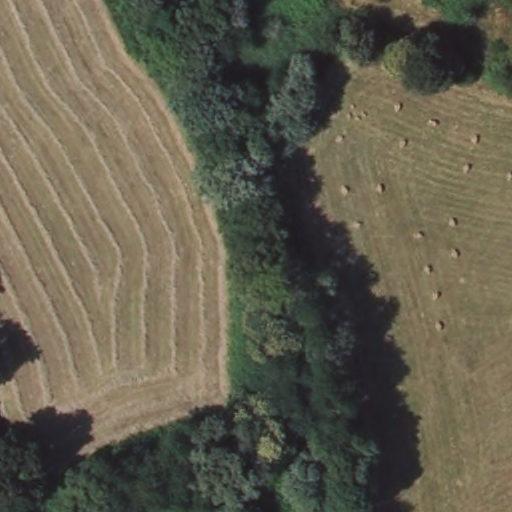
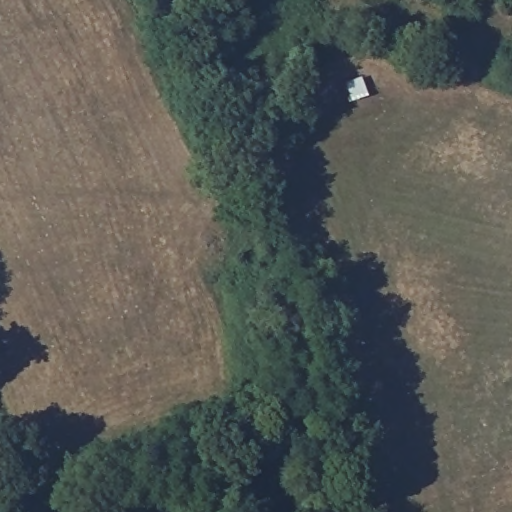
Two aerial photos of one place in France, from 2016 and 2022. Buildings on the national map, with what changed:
[]

